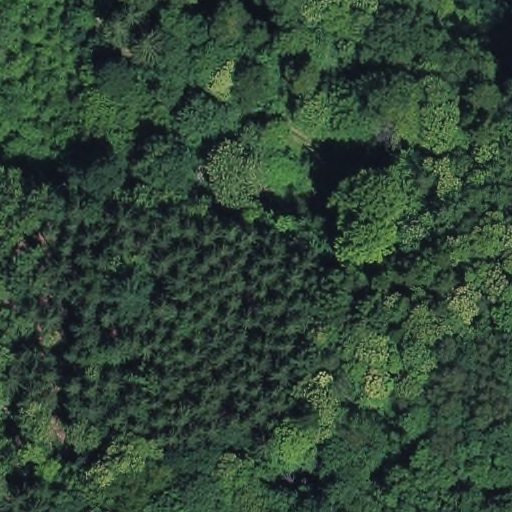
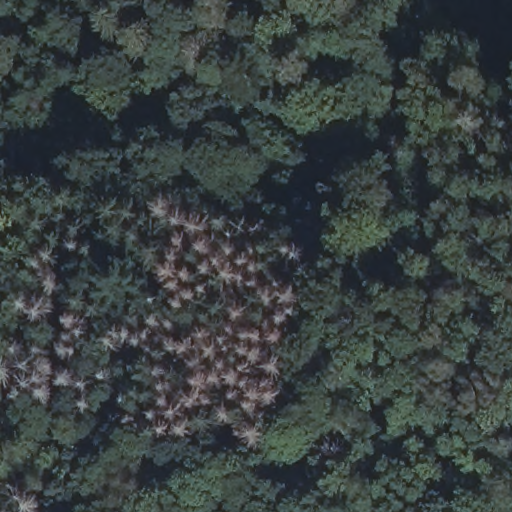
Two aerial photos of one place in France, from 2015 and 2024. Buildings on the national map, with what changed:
[]

